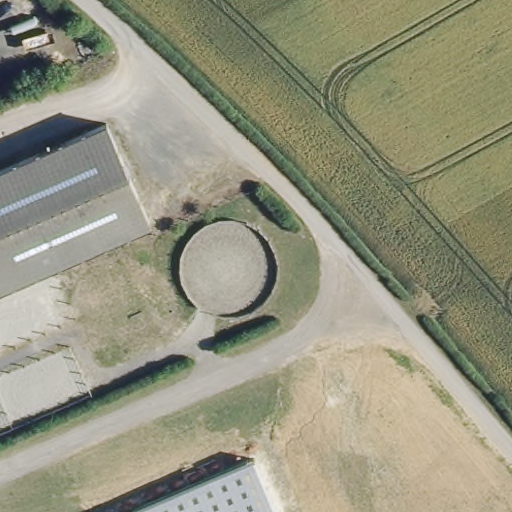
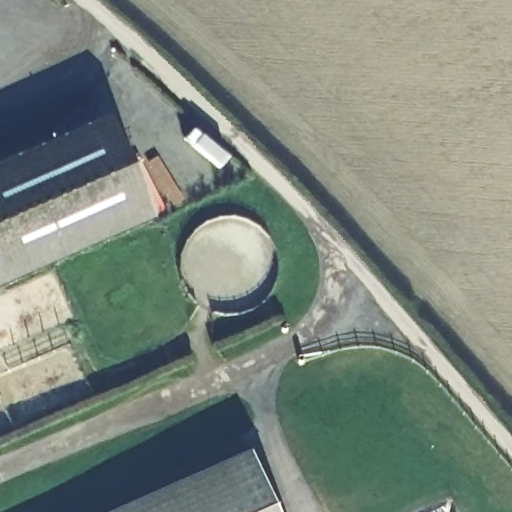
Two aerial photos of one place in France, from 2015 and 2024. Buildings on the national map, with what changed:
unchanged [(0,288),(0,169),(105,123),(148,222),(0,288)]
unchanged [(279,512),(127,512),(254,456),(279,512)]

